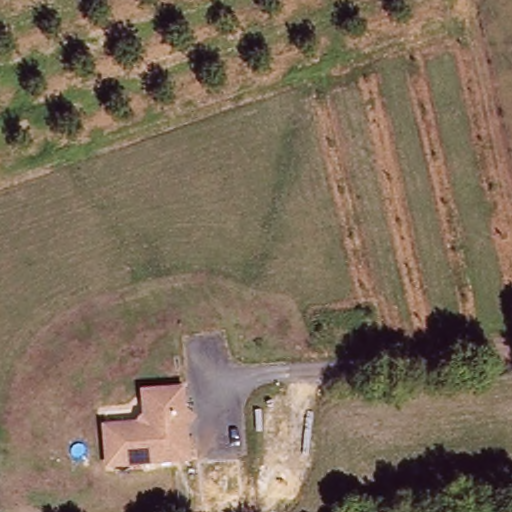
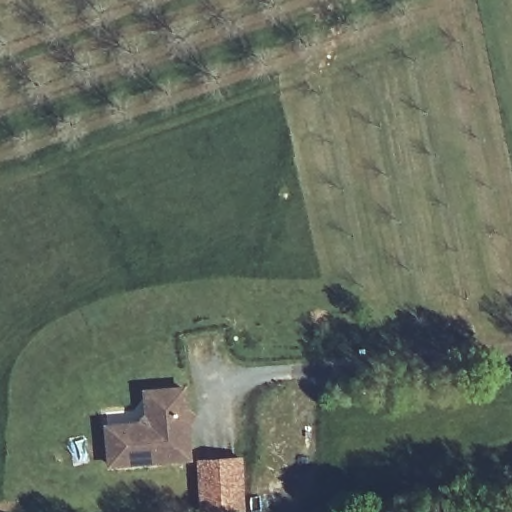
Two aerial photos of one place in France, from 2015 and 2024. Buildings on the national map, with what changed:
unchanged [(192,420),(185,428),(191,461),(112,473),(107,436),(140,431),(147,423),(145,411),(143,397),(160,395),(180,392),(181,402),(183,412),(192,420)]
new [(200,512),(197,461),(243,456),(248,512),(200,512)]

